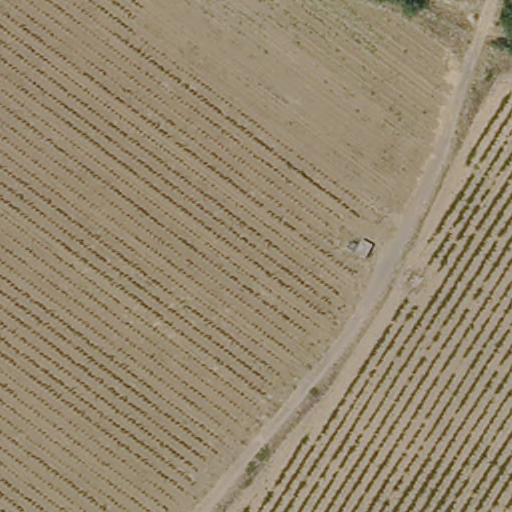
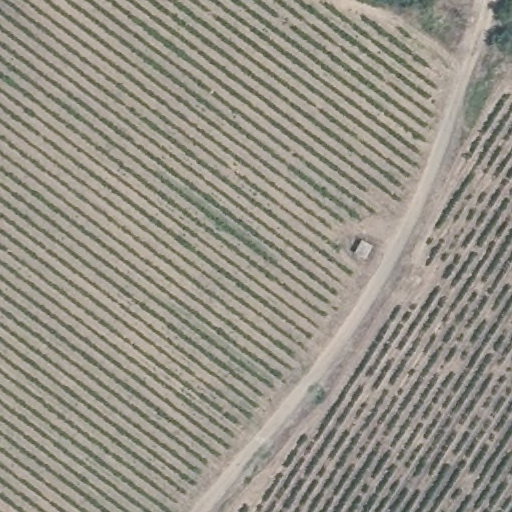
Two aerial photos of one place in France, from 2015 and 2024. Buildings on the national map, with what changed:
unchanged [(376,242),(369,256),(357,249),(363,236),(376,242)]

